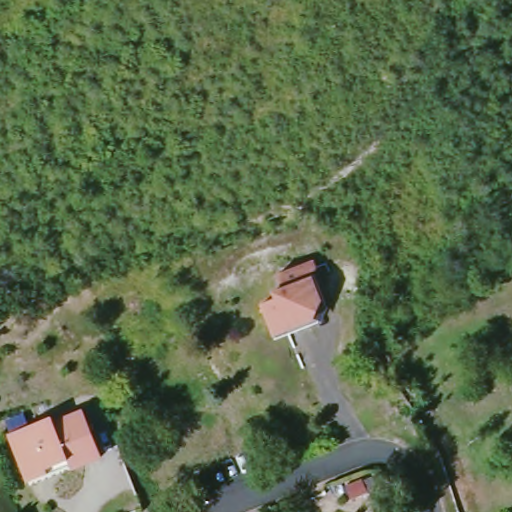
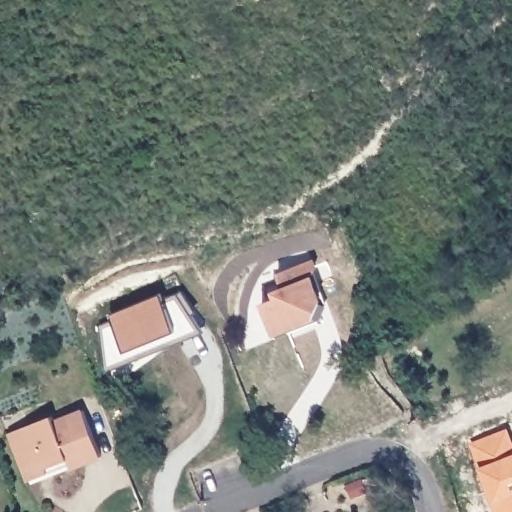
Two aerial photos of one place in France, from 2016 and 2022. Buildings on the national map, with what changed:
unchanged [(312,265),(309,274),(318,299),(305,304),(310,317),(295,322),(297,326),(272,336),(258,301),(273,295),(270,289),(280,285),(275,271),(310,258),(312,265)]
new [(107,369),(102,326),(112,322),(110,314),(162,295),(163,300),(182,292),(198,313),(193,316),(203,332),(107,369)]
unchanged [(73,467),(70,459),(48,467),(50,472),(30,480),(14,439),(12,432),(32,425),(54,415),(56,421),(85,409),(103,455),(73,467)]
new [(503,423),(512,443),(512,512),(490,512),(464,445),(503,423)]
unchanged [(349,487),(365,481),(370,494),(354,500),(349,487)]

